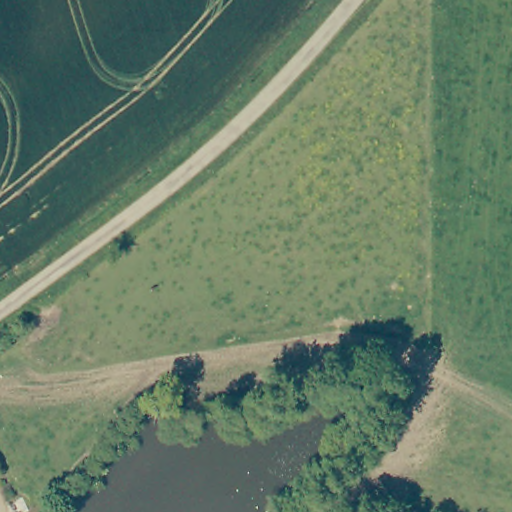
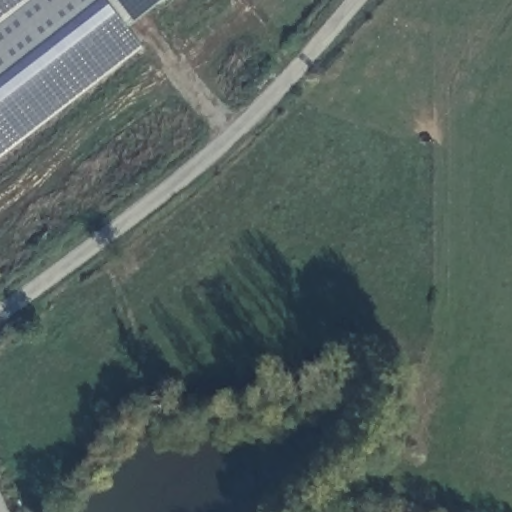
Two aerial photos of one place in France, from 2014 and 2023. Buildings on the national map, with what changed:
new [(127,27),(142,49),(0,158),(0,0),(160,0),(127,27)]

